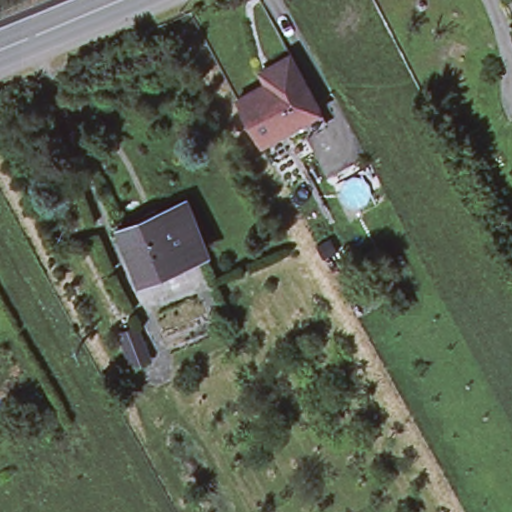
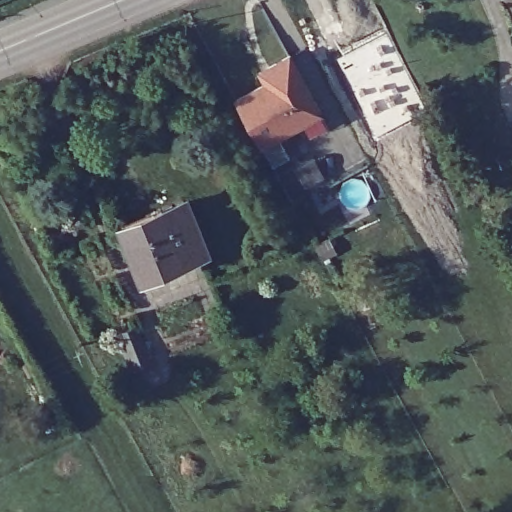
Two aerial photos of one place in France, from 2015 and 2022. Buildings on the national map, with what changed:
new [(429,113),(377,139),(336,59),(390,34),(429,113)]
unchanged [(261,74),(272,68),(291,57),(323,113),(263,145),(239,101),(268,85),(261,74)]
unchanged [(162,210),(161,207),(183,197),(204,247),(144,273),(125,225),(162,210)]
unchanged [(137,320),(149,355),(133,361),(120,327),(137,320)]

